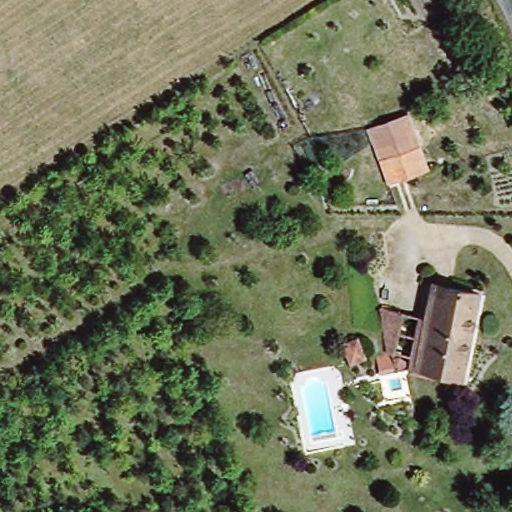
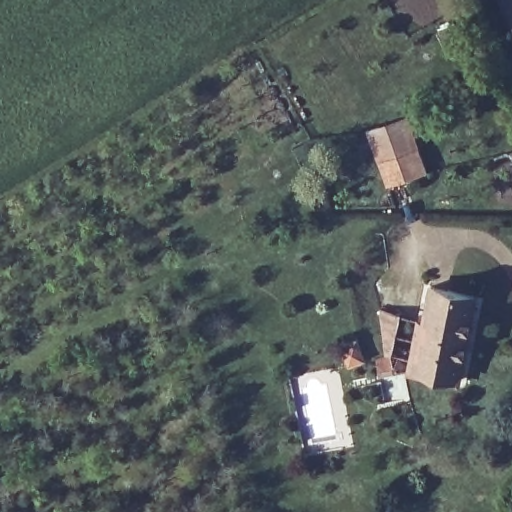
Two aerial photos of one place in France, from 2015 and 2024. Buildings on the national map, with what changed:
unchanged [(388,184),(365,128),(406,113),(429,170),(388,184)]
unchanged [(436,283),(480,293),(462,372),(418,362),(430,312),(436,283)]
unchanged [(393,367),(378,312),(430,312),(418,362),(393,367)]

